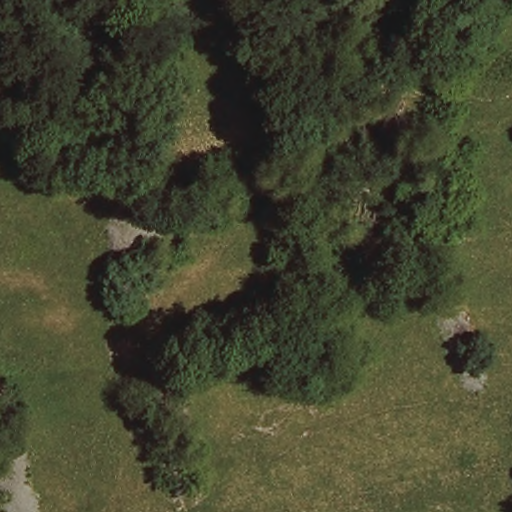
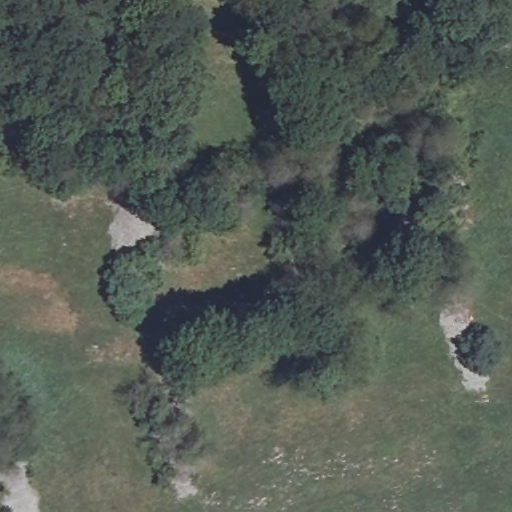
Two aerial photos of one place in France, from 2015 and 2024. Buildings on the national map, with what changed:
[]

